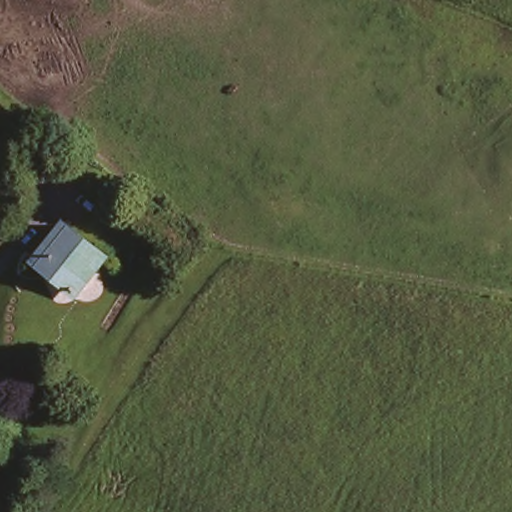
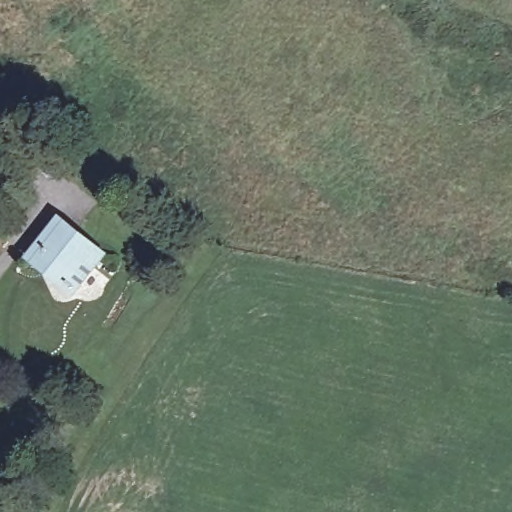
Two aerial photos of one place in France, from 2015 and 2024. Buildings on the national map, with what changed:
unchanged [(105,256),(82,293),(36,260),(60,225),(105,256)]

